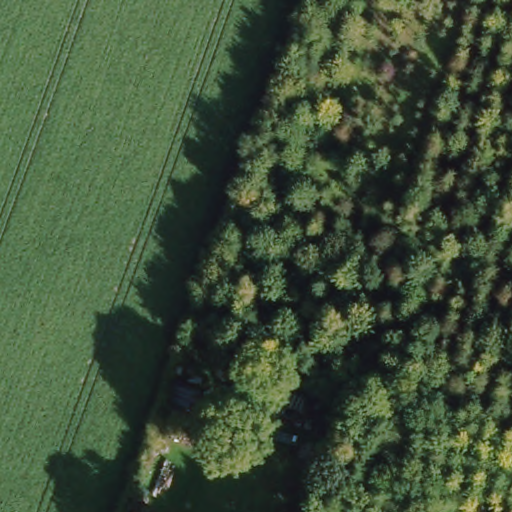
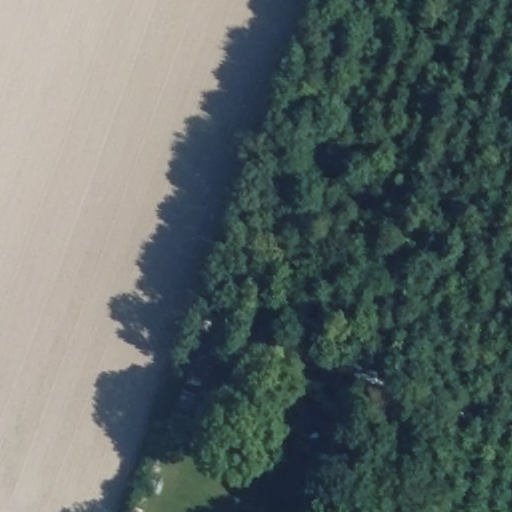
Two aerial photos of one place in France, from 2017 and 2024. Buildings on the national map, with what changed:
unchanged [(165,418),(175,380),(202,394),(184,425),(165,418)]

